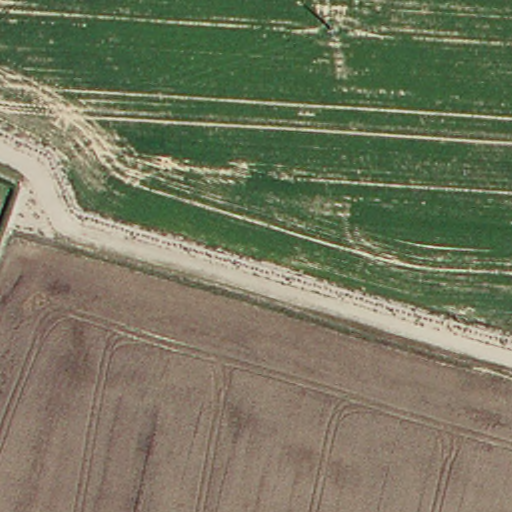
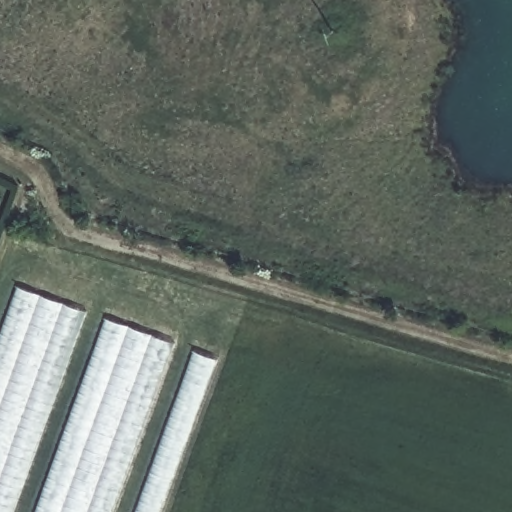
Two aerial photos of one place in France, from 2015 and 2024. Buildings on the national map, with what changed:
new [(0,512),(0,336),(18,286),(87,311),(13,512),(0,512)]
new [(175,342),(113,512),(36,512),(107,317),(175,342)]
new [(135,512),(194,348),(218,357),(161,512),(135,512)]
new [(178,512),(232,363),(255,371),(203,512),(178,512)]
new [(221,512),(271,377),(292,385),(246,512),(221,512)]

